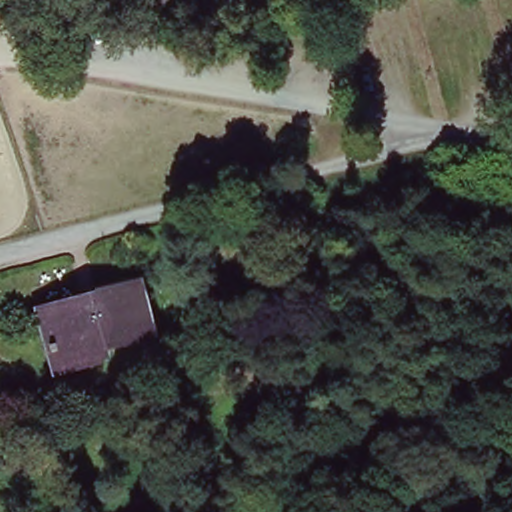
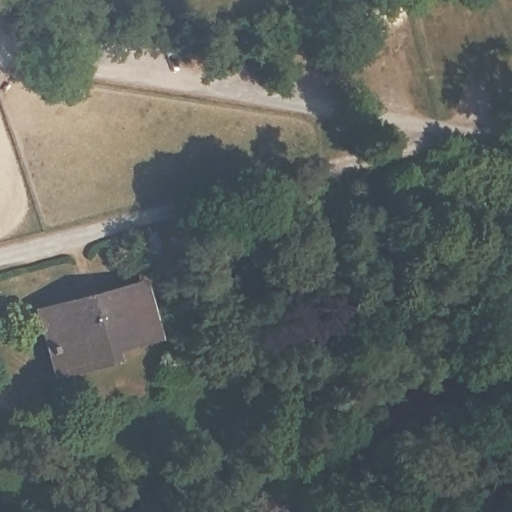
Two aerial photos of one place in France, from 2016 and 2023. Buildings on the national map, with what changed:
unchanged [(151,328),(91,343),(95,353),(52,366),(36,307),(138,280),(151,328)]

